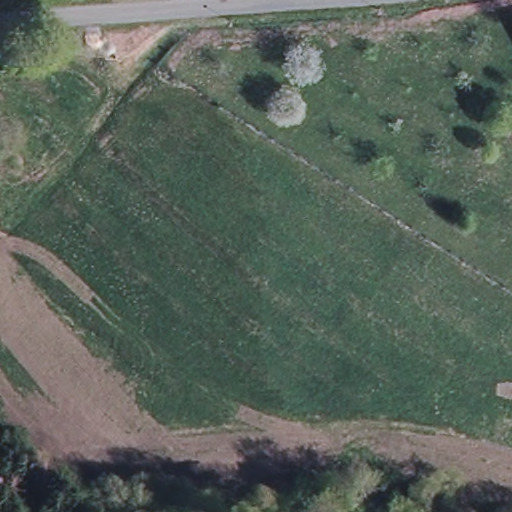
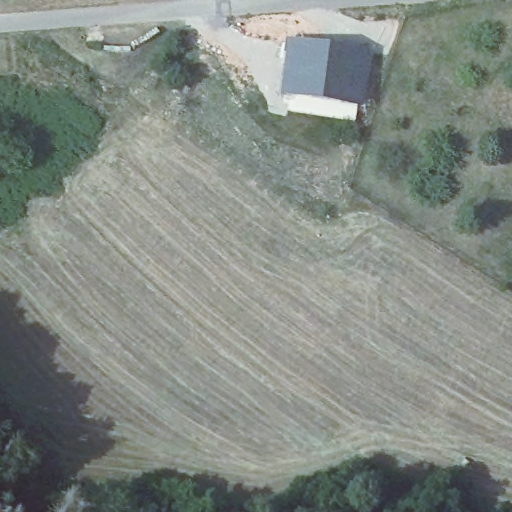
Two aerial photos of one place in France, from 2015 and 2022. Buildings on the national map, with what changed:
new [(369,50),(363,104),(280,93),(290,37),(369,50)]

